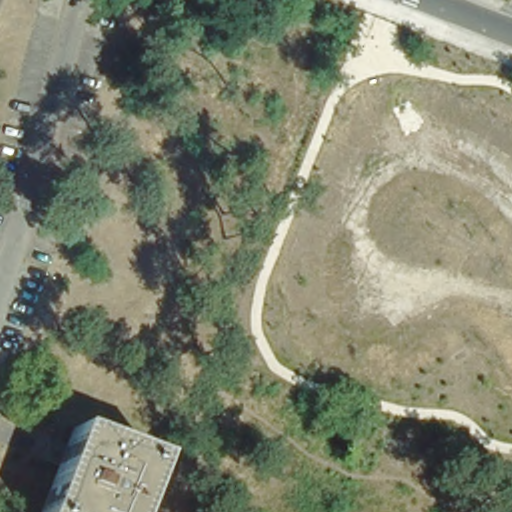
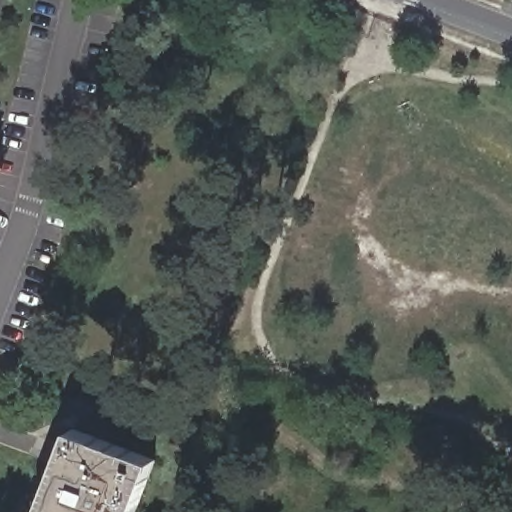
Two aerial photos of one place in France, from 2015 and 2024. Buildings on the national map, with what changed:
unchanged [(155,461),(135,512),(41,512),(74,430),(155,461)]

